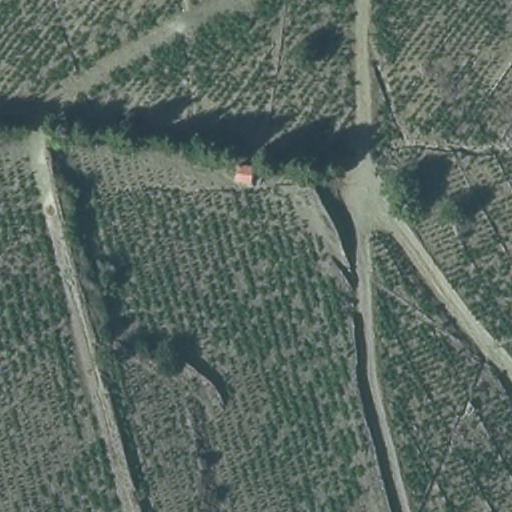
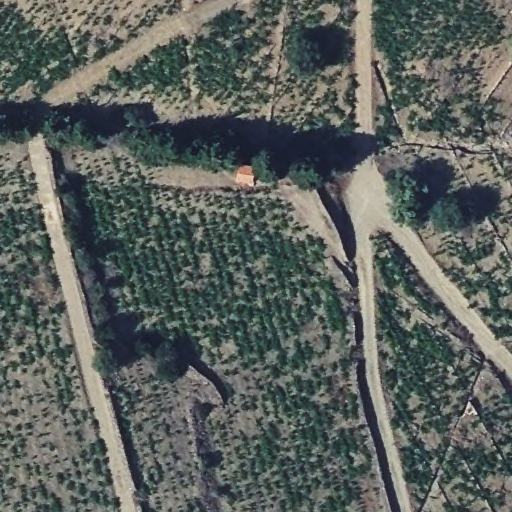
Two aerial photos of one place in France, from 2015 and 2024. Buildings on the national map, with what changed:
unchanged [(260,186),(240,182),(241,168),(261,167),(260,186)]

